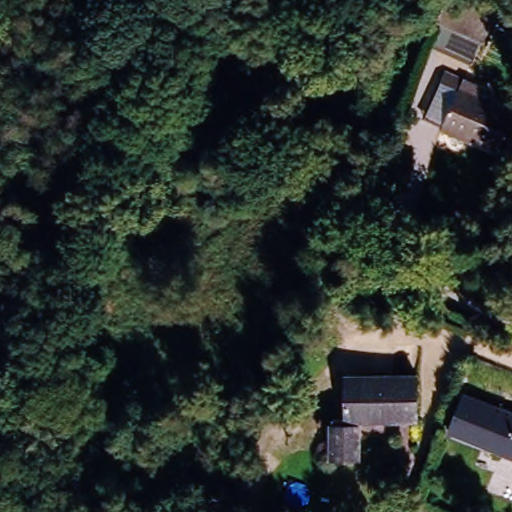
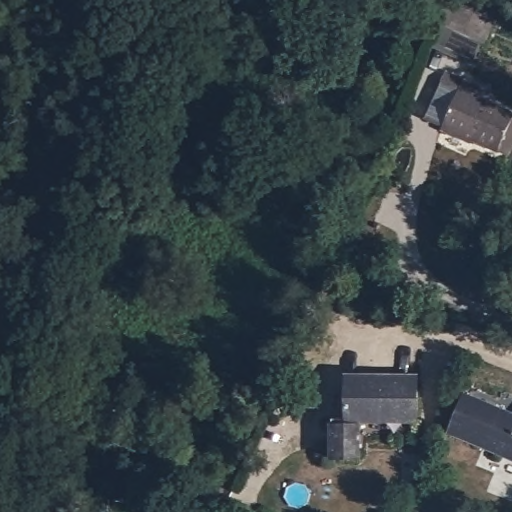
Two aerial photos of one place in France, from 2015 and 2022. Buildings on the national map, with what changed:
unchanged [(494,152),(437,124),(457,85),(512,112),(512,116),(494,152)]
unchanged [(420,422),(369,423),(367,464),(325,464),(322,420),(343,421),(344,374),(417,372),(420,422)]
unchanged [(452,437),(463,397),(512,413),(512,456),(452,437)]

